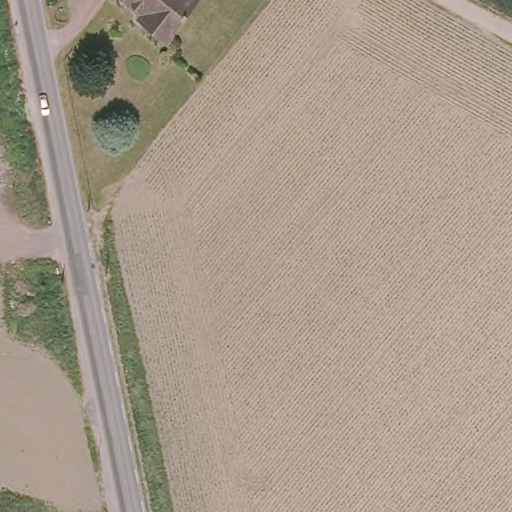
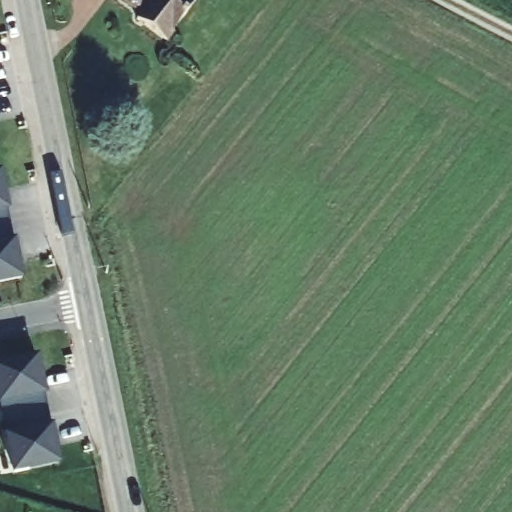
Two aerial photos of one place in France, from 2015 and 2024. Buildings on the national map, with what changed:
new [(139,22),(143,16),(122,0),(201,0),(166,45),(139,22)]
demolished [(150,9),(154,4),(149,0),(202,0),(175,31),(150,9)]
new [(25,279),(0,285),(0,171),(3,170),(25,279)]
new [(38,359),(48,411),(3,420),(0,402),(0,366),(38,359)]
new [(48,411),(58,464),(14,473),(3,420),(48,411)]

